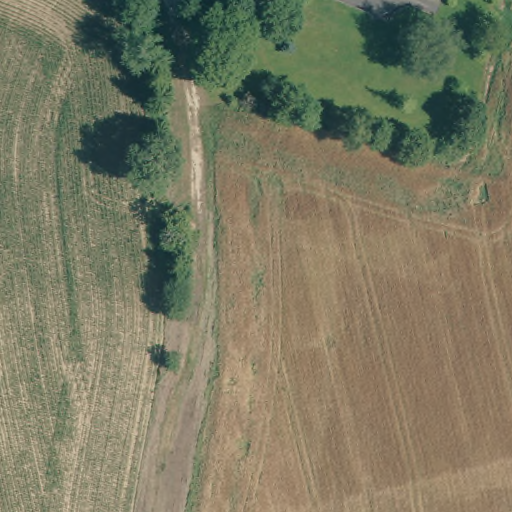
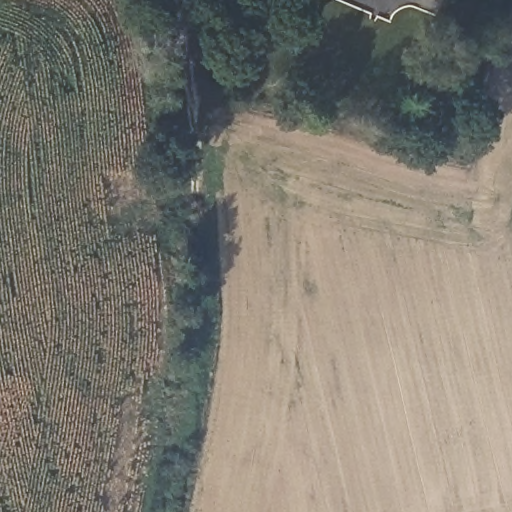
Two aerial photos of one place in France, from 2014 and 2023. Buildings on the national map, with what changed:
[]

